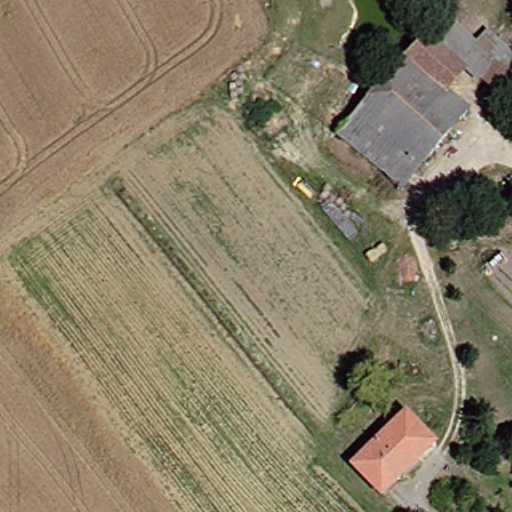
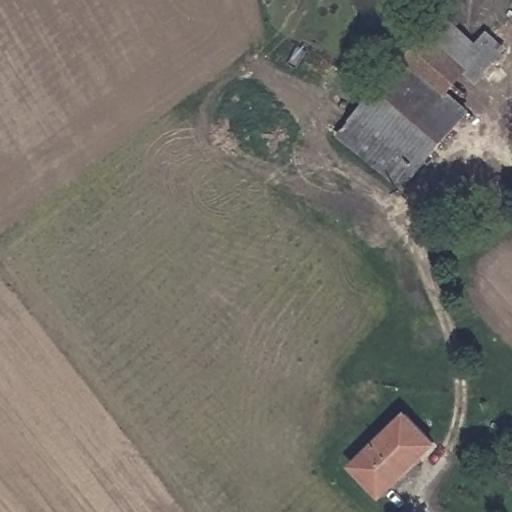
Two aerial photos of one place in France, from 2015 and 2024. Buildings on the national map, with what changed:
unchanged [(405,62),(422,39),(458,69),(440,91),(405,62)]
unchanged [(497,109),(482,94),(486,88),(481,81),(492,70),(471,51),(482,39),(512,65),(512,68),(506,78),(512,82),(512,92),(501,104),(497,109)]
unchanged [(350,118),(402,59),(405,62),(440,91),(461,111),(410,171),(350,118)]
unchanged [(334,134),(350,118),(410,171),(393,190),(334,134)]
unchanged [(430,447),(372,495),(348,466),(405,418),(430,447)]

